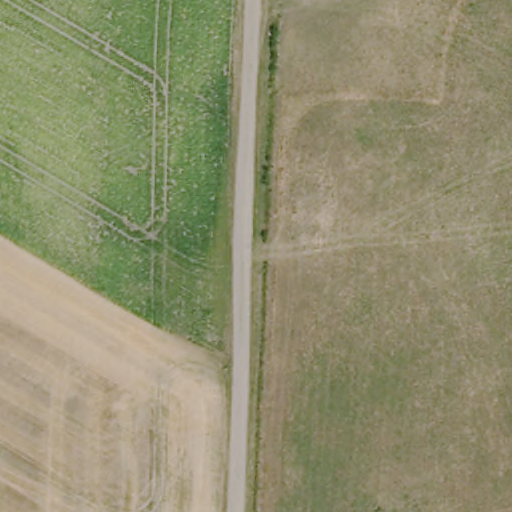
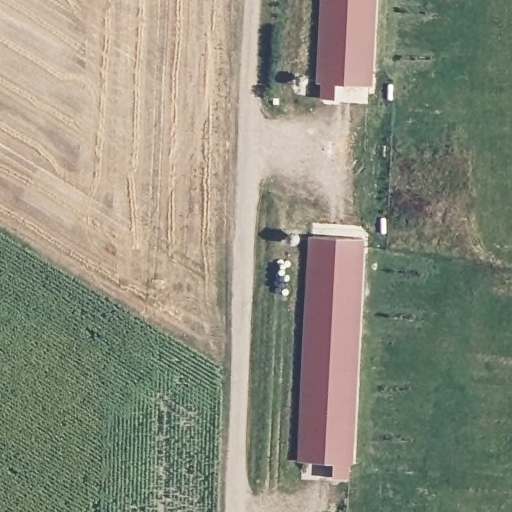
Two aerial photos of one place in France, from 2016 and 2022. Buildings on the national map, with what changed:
new [(336,84),(336,97),(319,96),(323,0),(377,0),(374,85),(336,84)]
new [(335,476),(335,462),(299,460),(309,235),(364,238),(351,476),(335,476)]

